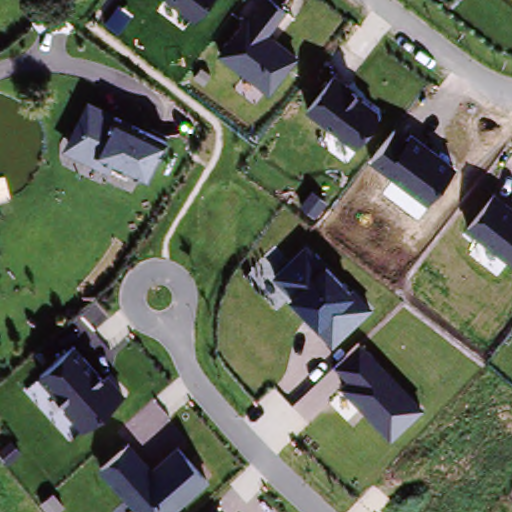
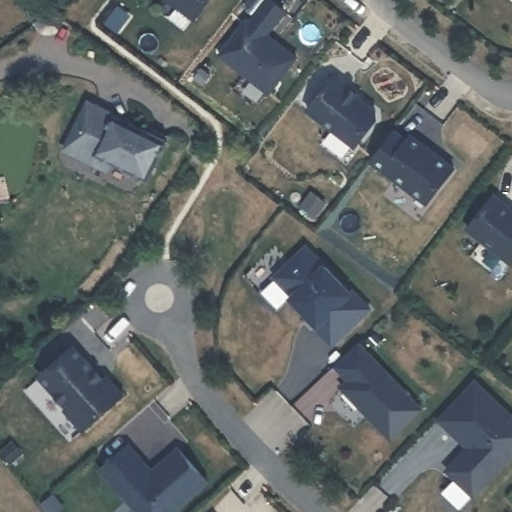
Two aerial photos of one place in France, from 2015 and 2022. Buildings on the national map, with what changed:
unchanged [(169,0),(213,0),(197,20),(169,0)]
unchanged [(269,35),(297,57),(269,94),(220,55),(262,0),(270,0),(287,11),(269,35)]
unchanged [(363,95),(360,99),(375,109),(377,119),(357,148),(307,111),(334,74),(363,95)]
unchanged [(168,140),(148,182),(114,165),(109,173),(62,151),(86,99),(168,140)]
unchanged [(455,168),(428,204),(372,163),(399,126),(455,168)]
unchanged [(512,262),(470,229),(493,194),(512,209),(512,262)]
unchanged [(349,292),(354,289),(373,309),(334,345),(288,299),(292,294),(275,277),(307,245),(349,292)]
unchanged [(361,344),(424,408),(390,441),(340,391),(347,384),(337,366),(361,344)]
unchanged [(104,383),(110,376),(125,395),(84,431),(39,378),(75,349),(104,383)]
new [(512,422),(512,454),(470,498),(444,473),(458,458),(460,459),(464,455),(462,454),(466,449),(435,421),(470,383),(512,422)]
unchanged [(207,483),(173,512),(137,512),(100,472),(132,443),(157,471),(181,449),(207,483)]

